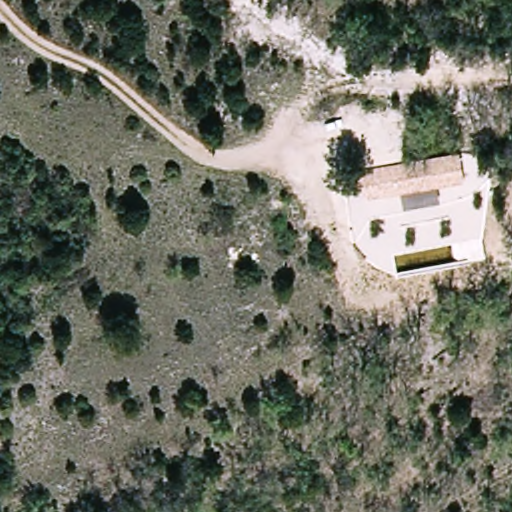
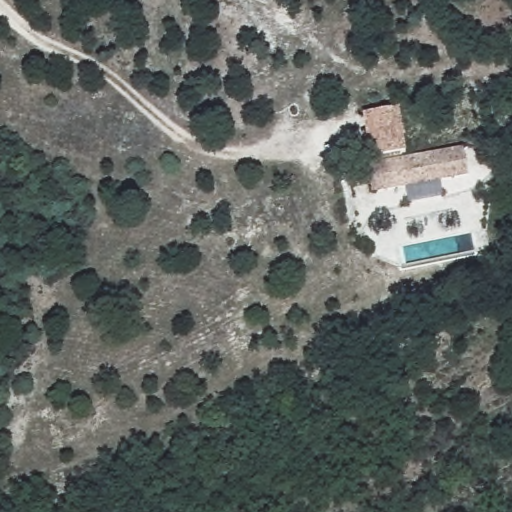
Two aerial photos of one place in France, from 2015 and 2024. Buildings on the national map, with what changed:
new [(399,106),(405,151),(369,157),(362,113),(399,106)]
unchanged [(442,194),(406,202),(403,187),(370,193),(362,162),(462,144),(466,174),(441,179),(442,194)]

